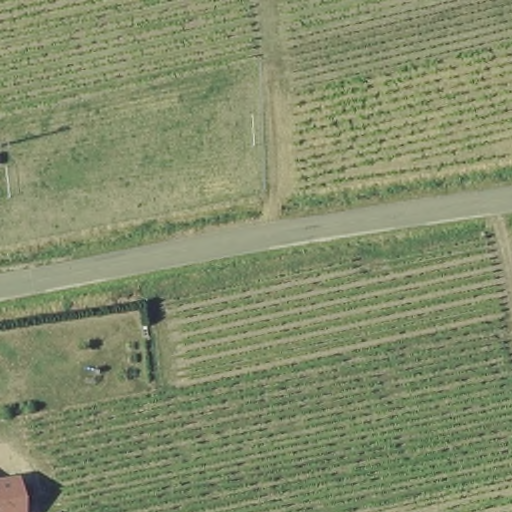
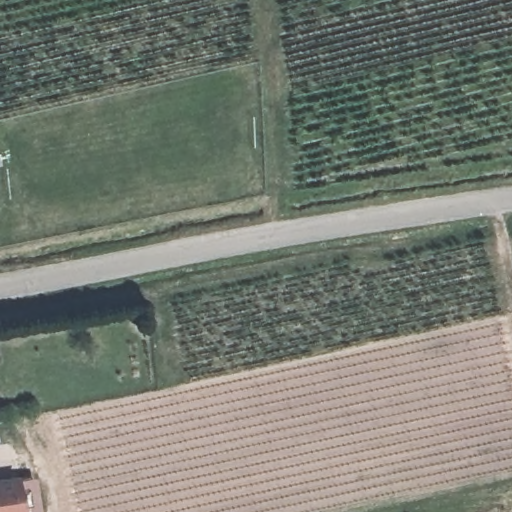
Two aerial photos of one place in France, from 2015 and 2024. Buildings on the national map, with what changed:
unchanged [(24,512),(0,512),(0,481),(19,478),(24,512)]

